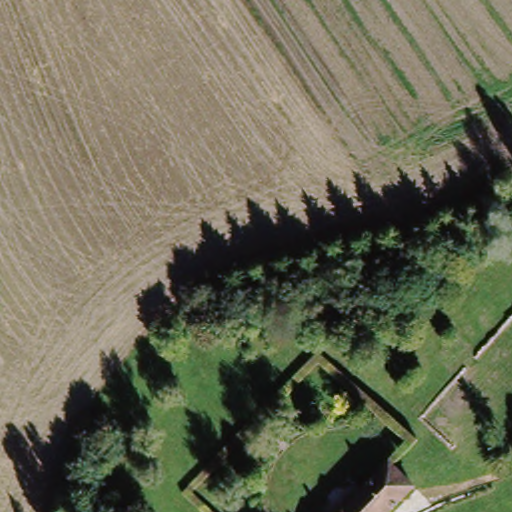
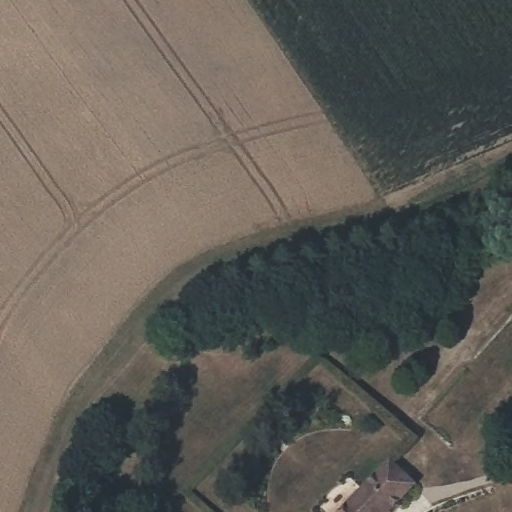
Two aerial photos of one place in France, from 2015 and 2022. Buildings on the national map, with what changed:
unchanged [(386,512),(337,512),(384,463),(409,488),(386,512)]

